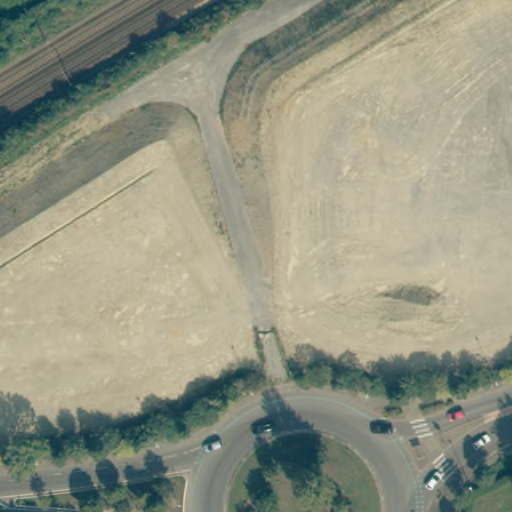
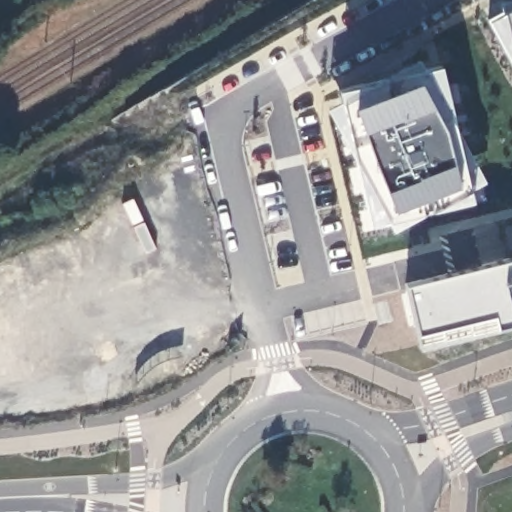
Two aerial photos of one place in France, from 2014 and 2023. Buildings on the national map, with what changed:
new [(512,5),(512,40),(501,10),(512,5)]
new [(343,99),(381,78),(424,69),(454,125),(467,186),(432,209),(385,218),(343,99)]
new [(512,321),(442,337),(418,343),(417,333),(405,284),(512,257),(512,321)]

